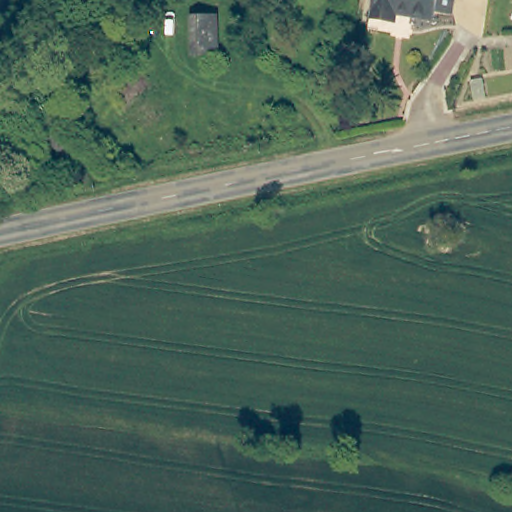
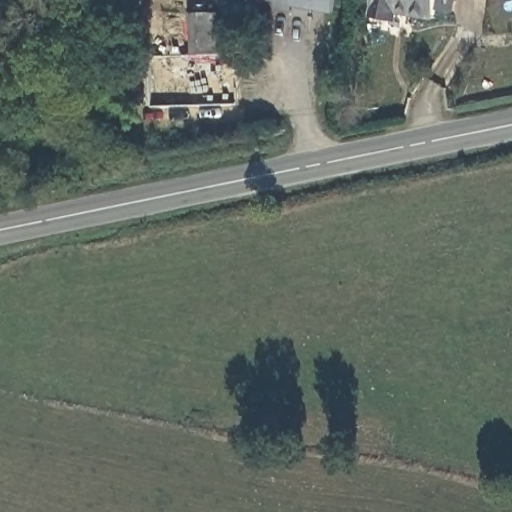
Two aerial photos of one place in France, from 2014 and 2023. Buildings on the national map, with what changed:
new [(333,14),(255,0),(335,0),(333,14)]
unchanged [(455,11),(453,10),(439,7),(437,16),(401,9),(399,16),(377,11),(379,0),(457,0),(455,11)]
unchanged [(220,12),(224,53),(197,56),(193,15),(220,12)]
unchanged [(50,143),(41,157),(16,139),(25,125),(50,143)]

